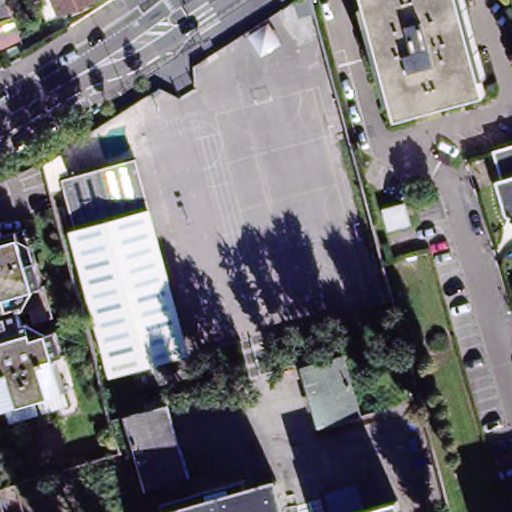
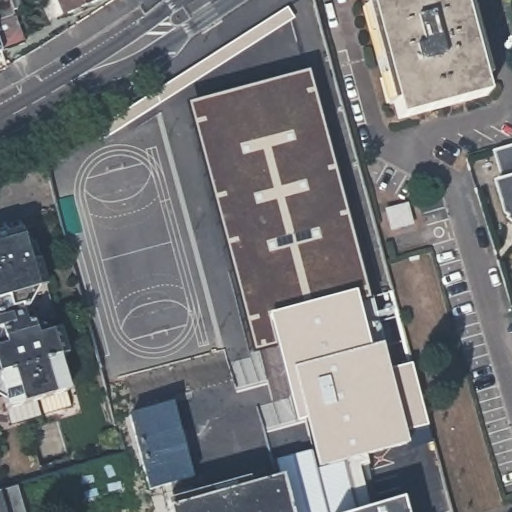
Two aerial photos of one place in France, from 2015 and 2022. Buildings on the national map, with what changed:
unchanged [(51,0),(100,0),(59,17),(51,0)]
unchanged [(299,21),(294,4),(301,0),(308,0),(313,17),(299,21)]
unchanged [(485,99),(397,124),(393,109),(387,110),(360,12),(365,11),(361,0),(462,0),(466,12),(461,14),(473,55),(478,54),(485,82),(481,84),(485,99)]
new [(303,79),(315,124),(319,122),(333,169),(329,170),(341,222),(346,221),(359,266),(355,267),(364,302),(250,336),(187,111),(303,79)]
unchanged [(508,222),(510,220),(506,217),(495,184),(501,182),(492,154),(512,147),(512,225),(508,222)]
demolished [(63,179),(136,160),(150,210),(76,229),(63,179)]
demolished [(141,387),(139,382),(136,368),(111,375),(71,230),(76,229),(150,210),(192,366),(194,373),(141,387)]
unchanged [(410,230),(389,236),(384,216),(404,211),(410,230)]
unchanged [(0,411),(0,228),(20,222),(46,312),(28,317),(21,297),(11,301),(16,318),(21,317),(26,331),(51,323),(58,348),(53,350),(50,355),(59,385),(58,386),(63,400),(36,407),(31,393),(29,394),(33,408),(2,417),(0,411)]
new [(389,374),(408,369),(426,431),(400,437),(404,450),(324,471),(311,423),(292,428),(287,403),(270,407),(250,336),(364,302),(369,302),(389,374)]
demolished [(361,422),(320,433),(302,372),(344,361),(361,422)]
unchanged [(163,403),(183,478),(141,489),(122,415),(163,403)]
unchanged [(285,512),(195,512),(197,512),(194,502),(247,487),(250,497),(279,490),(285,512)]
unchanged [(31,512),(18,512),(11,492),(24,488),(31,512)]
unchanged [(323,502),(364,490),(370,512),(326,512),(323,502)]
unchanged [(401,506),(403,512),(378,512),(401,506)]

